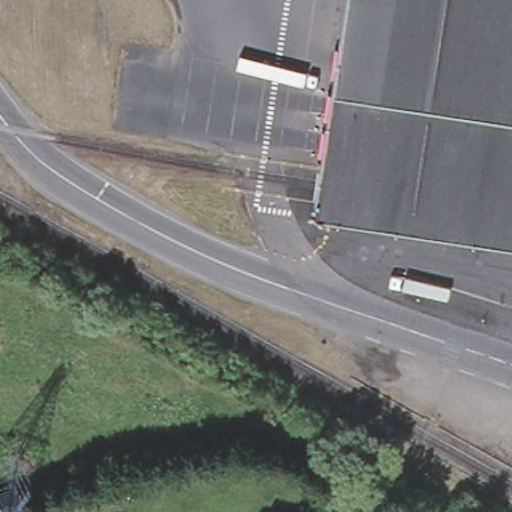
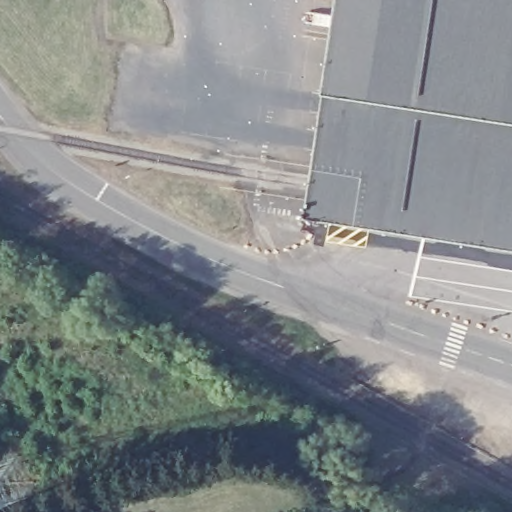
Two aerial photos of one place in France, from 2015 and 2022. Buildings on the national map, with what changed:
unchanged [(346,0),(512,0),(512,238),(314,206),(346,0)]

